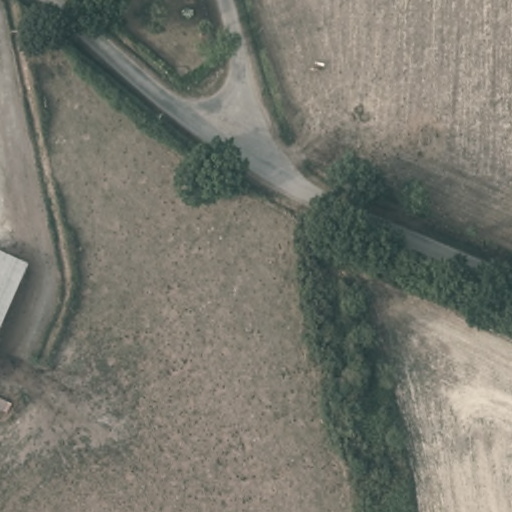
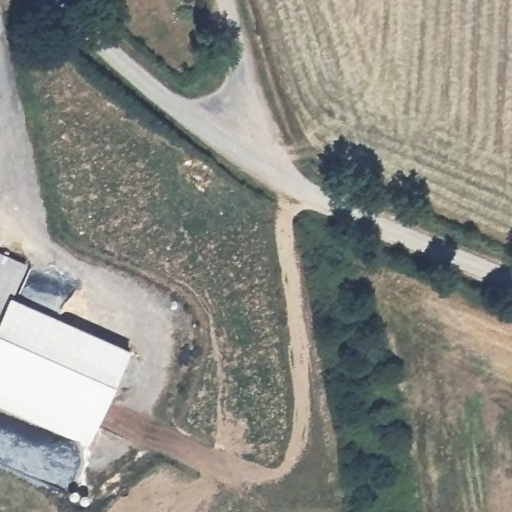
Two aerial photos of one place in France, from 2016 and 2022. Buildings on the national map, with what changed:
unchanged [(0,325),(0,255),(25,266),(0,325)]
new [(88,445),(0,405),(0,325),(11,299),(129,350),(88,445)]

